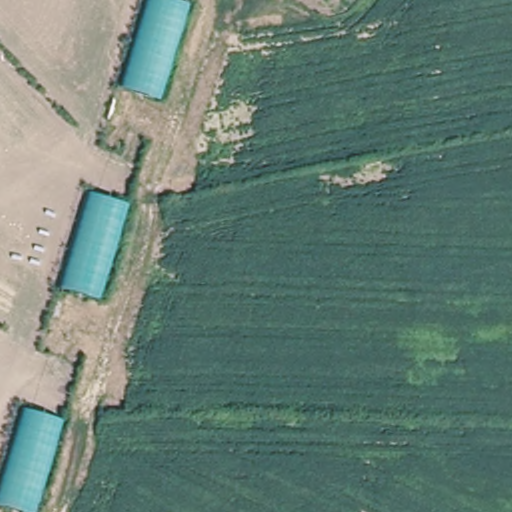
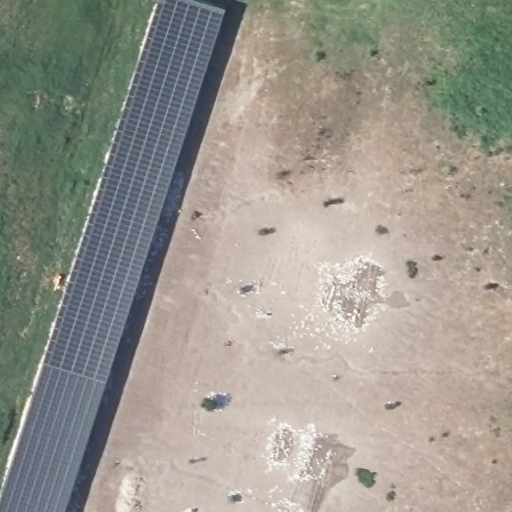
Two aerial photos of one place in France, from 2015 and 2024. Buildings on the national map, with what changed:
new [(225,9),(66,512),(0,512),(0,498),(157,0),(198,0),(225,9)]
demolished [(146,0),(191,0),(193,1),(163,93),(119,81),(146,0)]
demolished [(87,188),(130,201),(105,296),(59,283),(87,188)]
demolished [(66,417),(35,511),(0,497),(0,472),(23,403),(66,417)]

